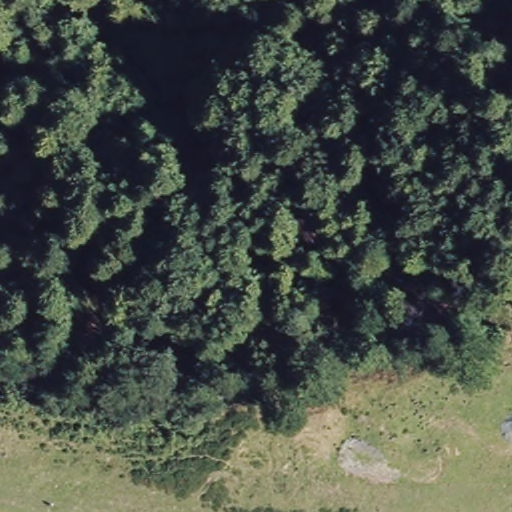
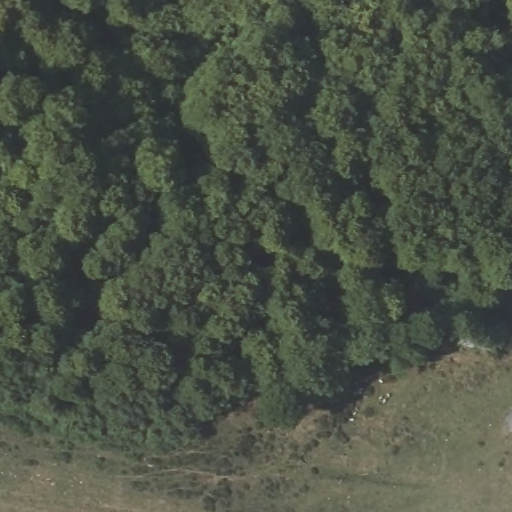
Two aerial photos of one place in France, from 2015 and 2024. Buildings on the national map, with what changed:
[]

